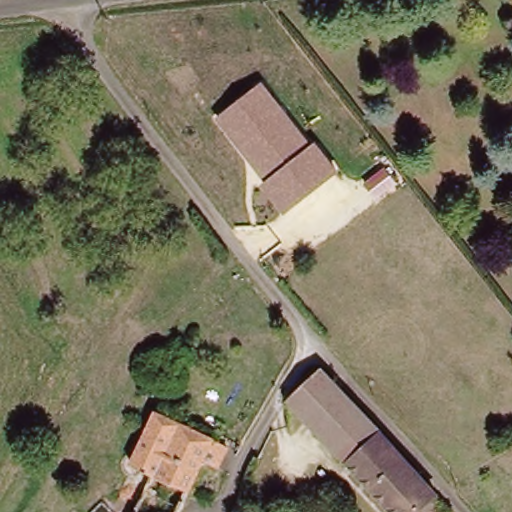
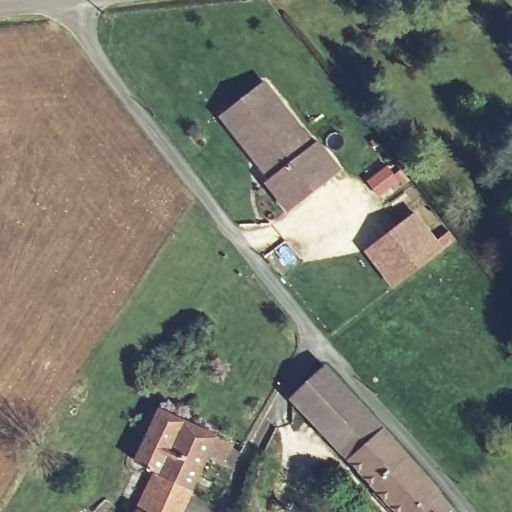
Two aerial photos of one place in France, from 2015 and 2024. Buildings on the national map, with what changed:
unchanged [(272,176),(223,114),(267,81),(315,142),(320,138),(345,169),(288,214),(265,182),(272,176)]
unchanged [(380,199),(367,181),(391,162),(404,181),(380,199)]
new [(417,210),(445,247),(393,287),(365,250),(417,210)]
unchanged [(416,512),(410,506),(405,512),(397,512),(293,395),(322,365),(446,512),(416,512)]
unchanged [(218,439),(184,512),(131,512),(150,474),(127,463),(155,408),(218,439)]

